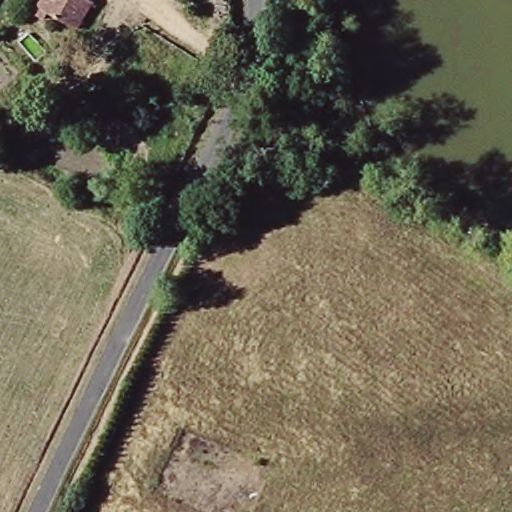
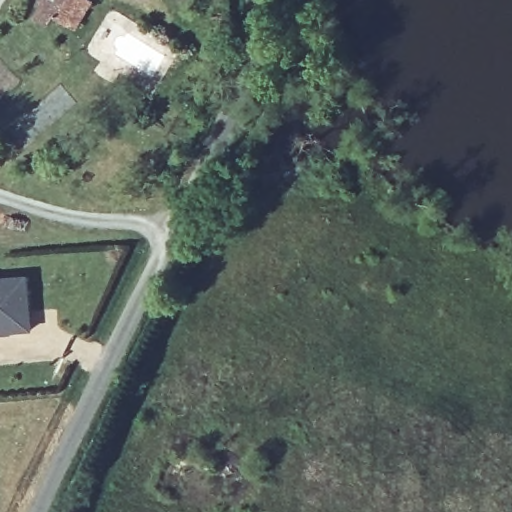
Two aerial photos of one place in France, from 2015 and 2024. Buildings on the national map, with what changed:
unchanged [(43,3),(45,0),(97,0),(98,1),(81,28),(43,3)]
new [(32,330),(0,333),(0,275),(27,273),(32,330)]

